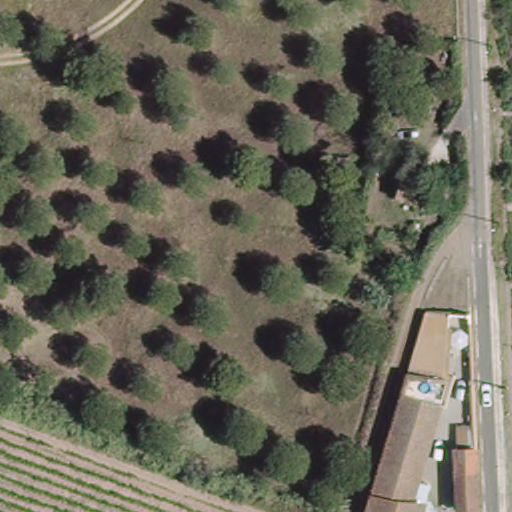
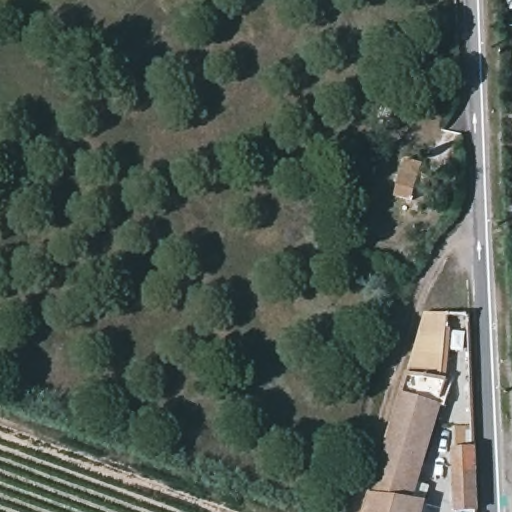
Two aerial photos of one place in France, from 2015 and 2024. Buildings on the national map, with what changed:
unchanged [(437,210),(422,205),(431,177),(446,183),(437,210)]
unchanged [(425,512),(365,512),(415,338),(424,316),(447,318),(439,382),(447,384),(417,485),(430,489),(425,512)]
unchanged [(457,507),(456,447),(460,447),(460,427),(479,427),(480,447),(482,507),(457,507)]

